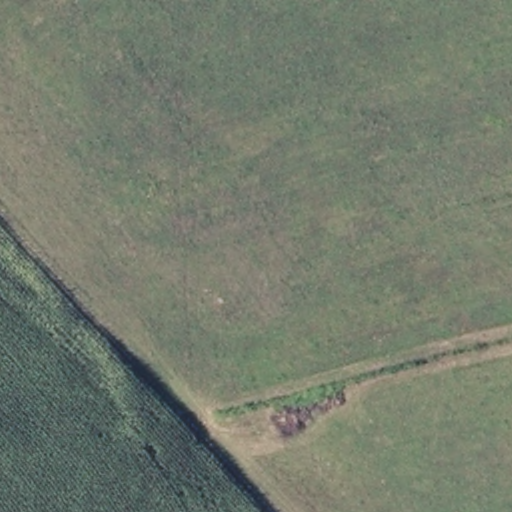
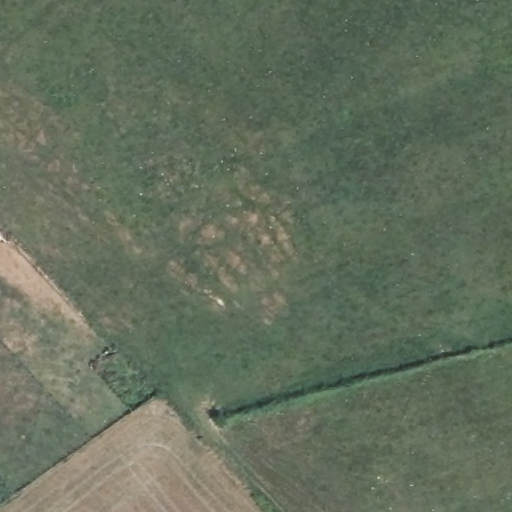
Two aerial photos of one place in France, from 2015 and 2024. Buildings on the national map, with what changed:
[]

